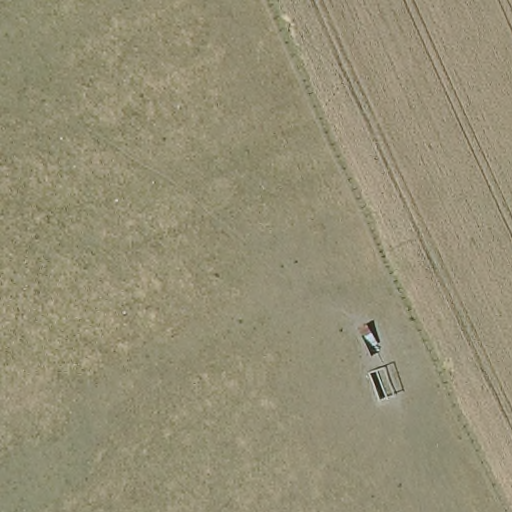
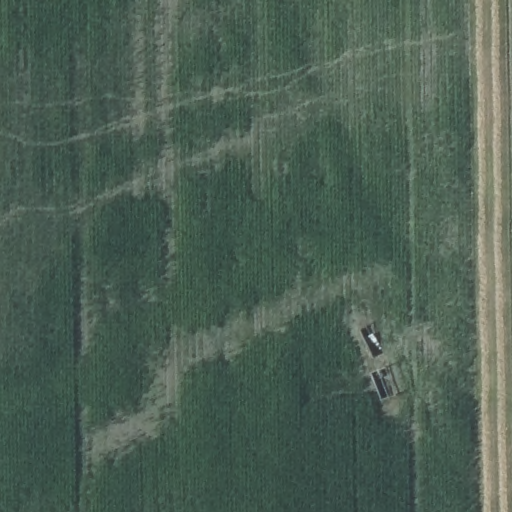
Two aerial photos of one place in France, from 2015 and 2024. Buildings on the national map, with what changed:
unchanged [(366,374),(385,368),(397,401),(379,407),(366,374)]

